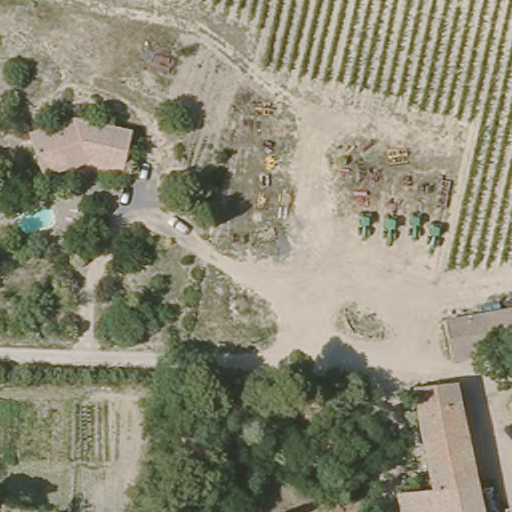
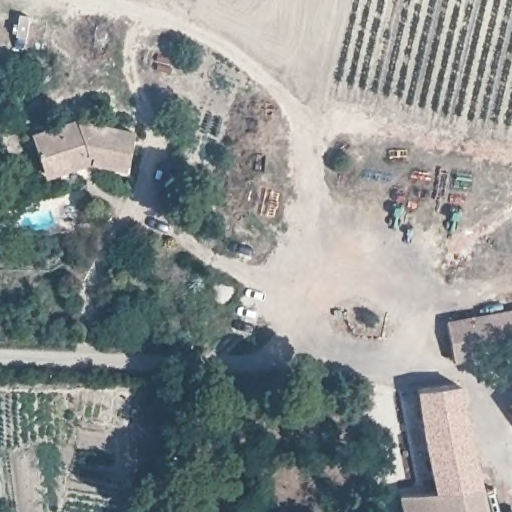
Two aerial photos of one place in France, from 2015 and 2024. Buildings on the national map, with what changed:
unchanged [(26,135),(73,115),(129,127),(121,166),(89,161),(45,179),(41,170),(26,135)]
unchanged [(512,307),(512,347),(474,354),(438,358),(430,325),(512,307)]
unchanged [(479,479),(400,489),(399,479),(422,472),(425,482),(435,479),(420,416),(416,381),(453,379),(479,479)]
unchanged [(512,388),(512,402),(506,394),(512,388)]
unchanged [(400,489),(479,479),(487,512),(405,512),(400,489)]
unchanged [(512,507),(512,512),(487,512),(512,507)]

